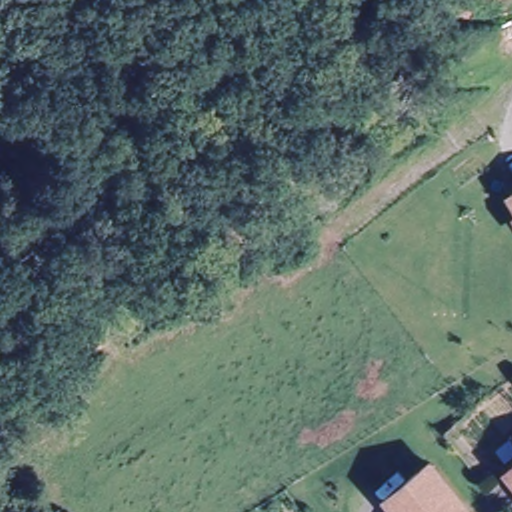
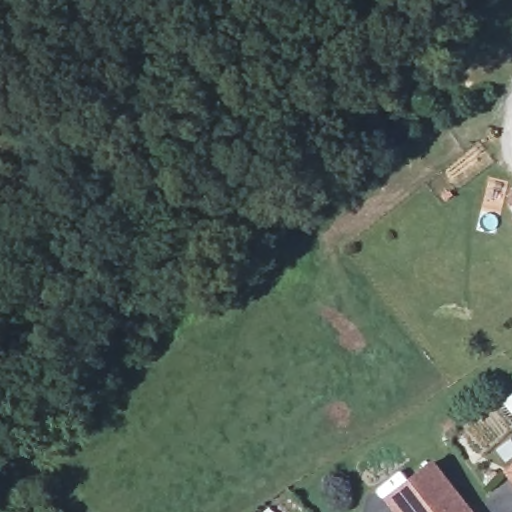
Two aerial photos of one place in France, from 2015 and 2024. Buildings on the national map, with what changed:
unchanged [(511,191),(512,191),(512,192),(511,191)]
unchanged [(434,465),(472,512),(402,512),(390,497),(434,465)]
unchanged [(502,472),(512,465),(512,485),(502,472)]

